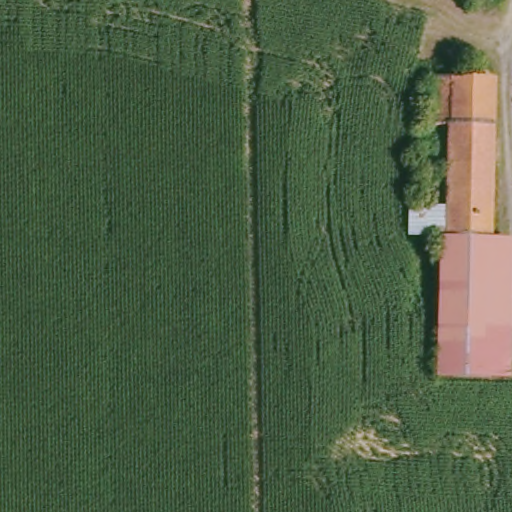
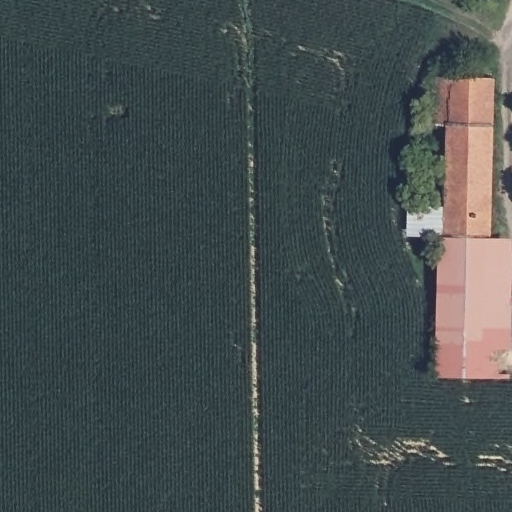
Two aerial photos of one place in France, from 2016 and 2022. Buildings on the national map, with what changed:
unchanged [(445,235),(415,236),(418,123),(433,122),(433,75),(498,77),(495,238),(445,235)]
unchanged [(495,238),(499,238),(495,377),(490,377),(442,374),(445,235),(495,238)]

